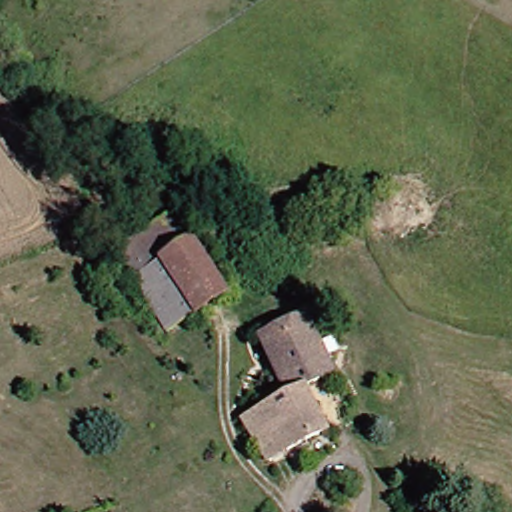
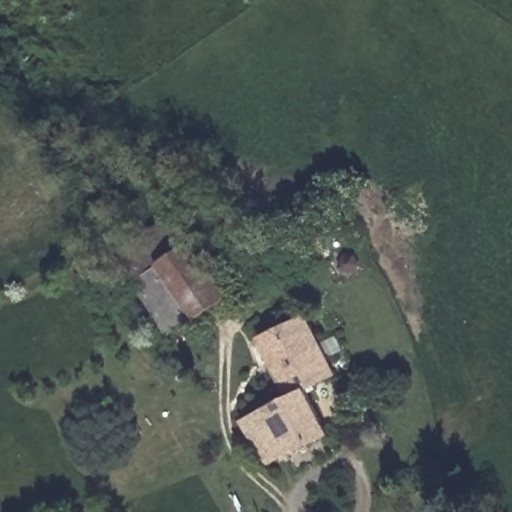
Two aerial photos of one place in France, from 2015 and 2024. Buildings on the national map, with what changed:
unchanged [(166,217),(184,244),(153,263),(173,294),(186,314),(157,333),(144,312),(107,254),(166,217)]
unchanged [(205,275),(217,294),(186,314),(173,294),(153,263),(184,244),(205,275)]
unchanged [(299,315),(326,373),(296,388),(319,433),(314,435),(321,451),(287,467),(280,452),(257,408),(279,397),(249,336),(299,315)]
unchanged [(259,463),(233,420),(257,408),(280,452),(259,463)]

